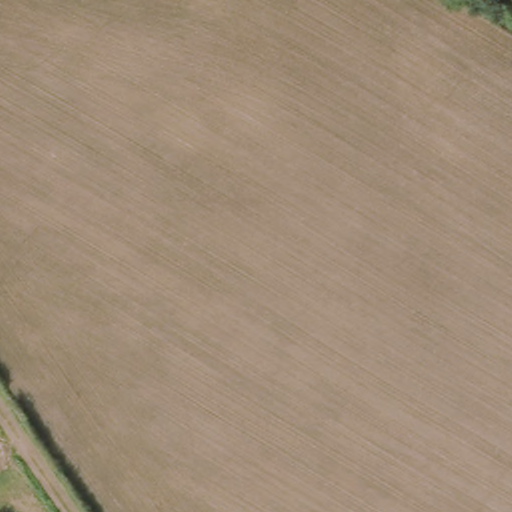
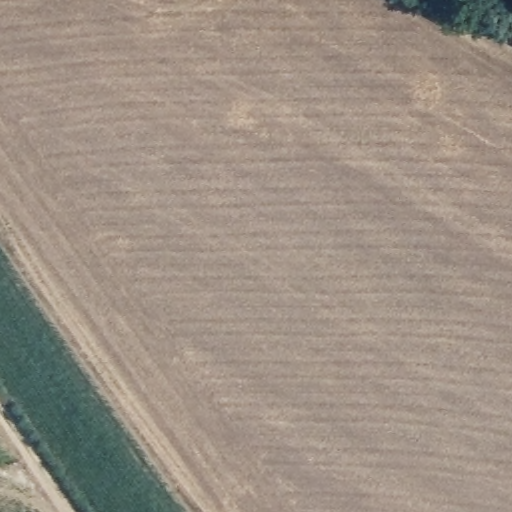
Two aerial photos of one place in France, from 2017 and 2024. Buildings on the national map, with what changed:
[]

